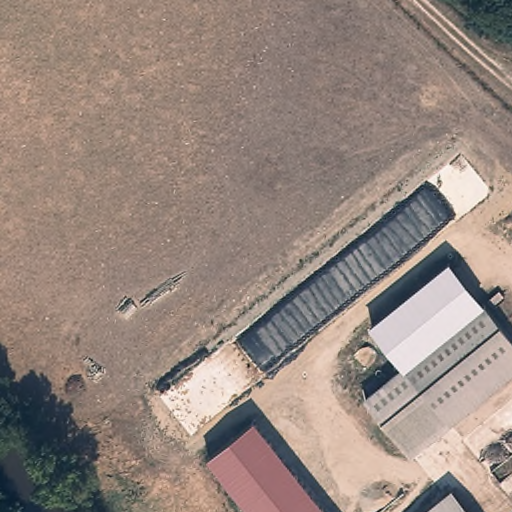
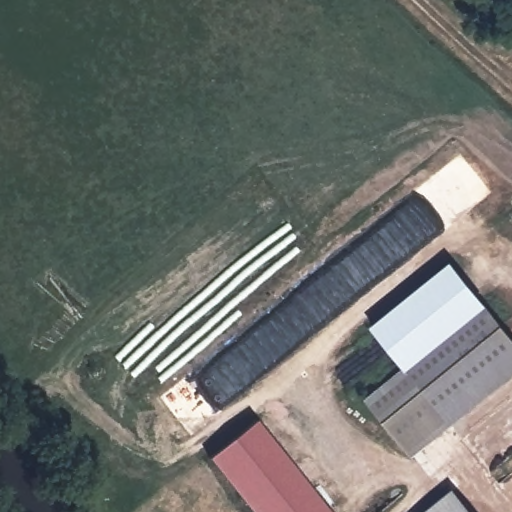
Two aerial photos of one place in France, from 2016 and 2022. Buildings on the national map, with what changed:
unchanged [(512,378),(450,429),(446,424),(407,377),(400,368),(373,335),(451,269),(465,285),(486,310),(512,341),(512,378)]
unchanged [(407,377),(446,424),(410,456),(362,398),(400,368),(407,377)]
unchanged [(330,512),(252,512),(207,458),(256,419),(330,512)]
unchanged [(450,493),(467,512),(427,512),(450,493)]

